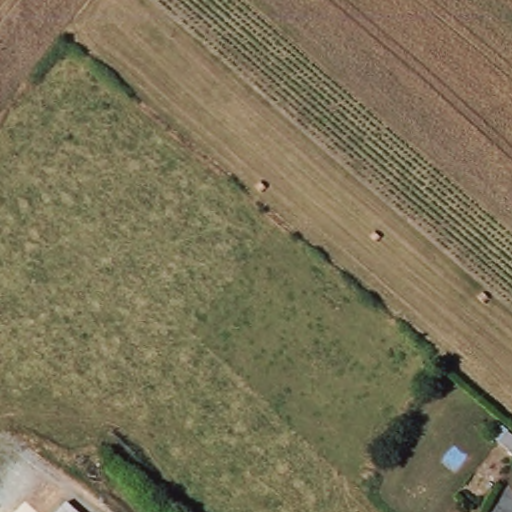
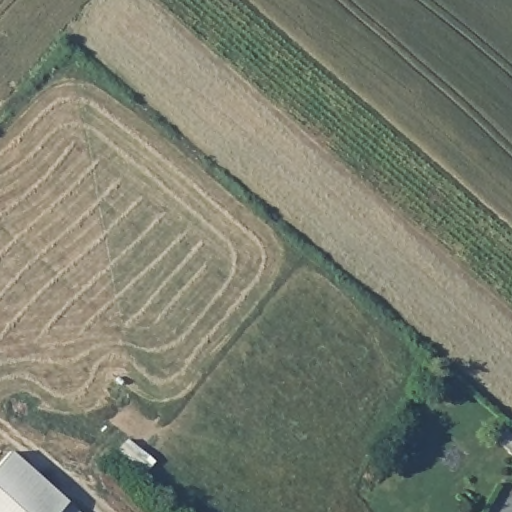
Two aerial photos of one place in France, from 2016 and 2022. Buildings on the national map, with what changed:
new [(0,512),(0,463),(11,451),(67,506),(62,512),(0,512)]
demolished [(435,512),(413,512),(423,501),(435,512)]
unchanged [(74,512),(62,512),(67,506),(74,512)]

